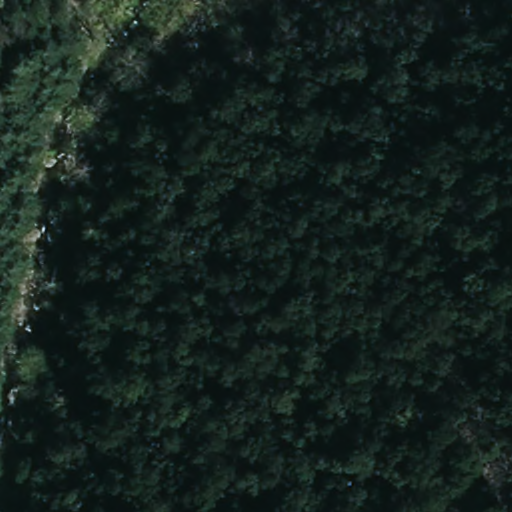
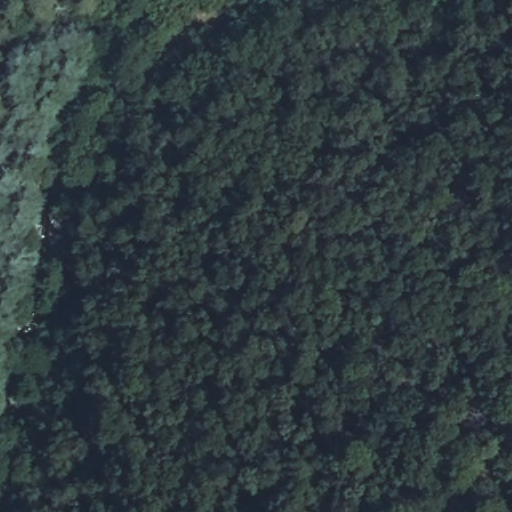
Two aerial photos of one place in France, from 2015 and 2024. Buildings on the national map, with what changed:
[]

